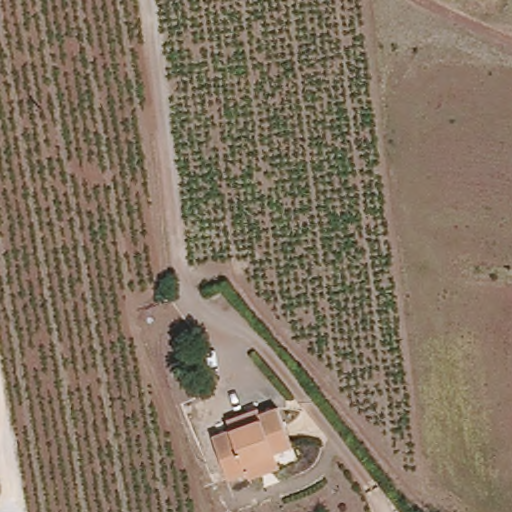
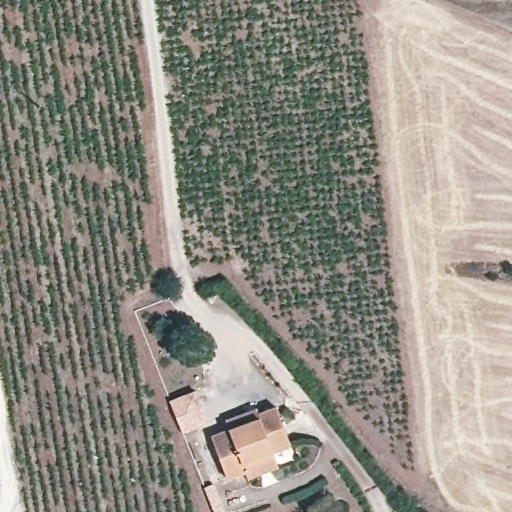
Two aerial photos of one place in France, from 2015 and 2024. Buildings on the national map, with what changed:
new [(196,392),(208,423),(183,433),(170,402),(196,392)]
unchanged [(241,478),(238,474),(223,479),(211,436),(227,431),(223,419),(254,409),(256,417),(273,410),(284,449),(265,455),(269,468),(241,478)]
new [(214,484),(225,512),(214,512),(204,488),(214,484)]

